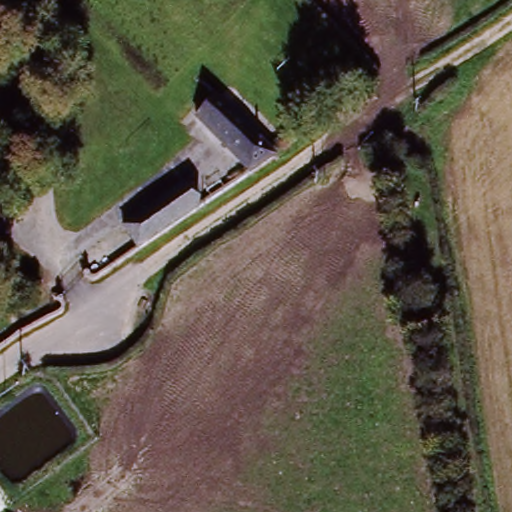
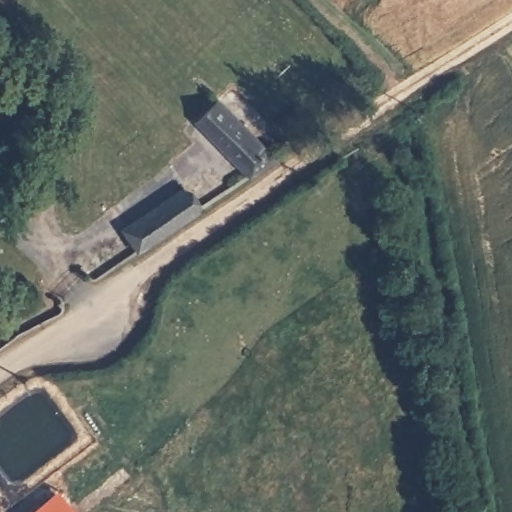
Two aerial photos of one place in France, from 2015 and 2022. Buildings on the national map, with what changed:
unchanged [(277,154),(249,175),(196,122),(222,97),(277,154)]
unchanged [(127,226),(185,184),(202,208),(145,250),(127,226)]
new [(29,512),(58,489),(78,512),(29,512)]

